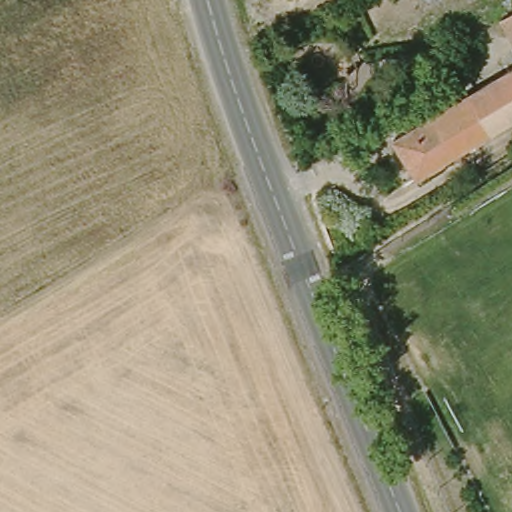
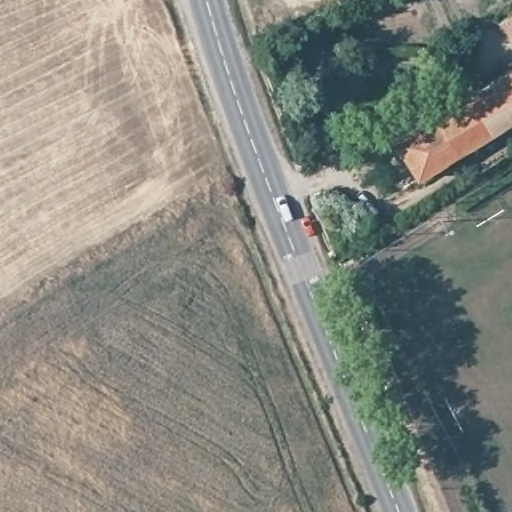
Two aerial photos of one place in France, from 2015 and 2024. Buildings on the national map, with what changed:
unchanged [(499,20),(512,11),(512,42),(499,20)]
unchanged [(431,182),(402,140),(512,66),(512,127),(431,182)]

